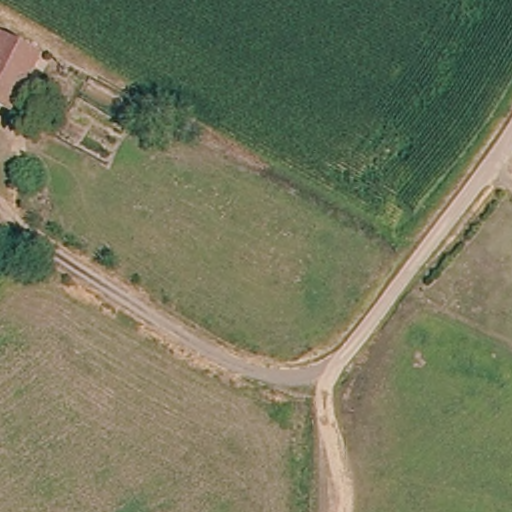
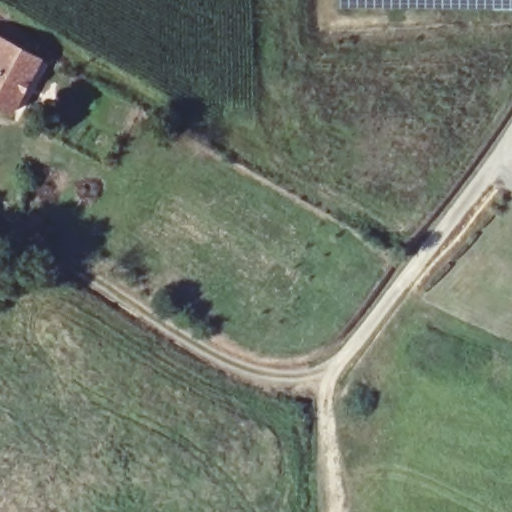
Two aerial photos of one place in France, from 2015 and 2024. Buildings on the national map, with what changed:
new [(340,0),(512,0),(512,9),(340,9),(340,0)]
unchanged [(1,36),(0,38),(0,35),(1,36)]
unchanged [(40,59),(6,115),(0,111),(0,38),(1,36),(40,59)]

